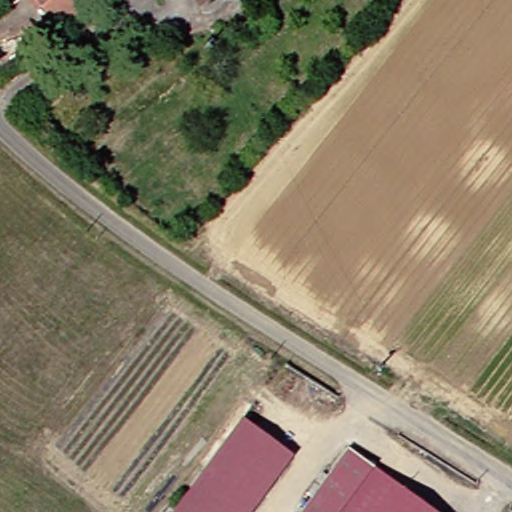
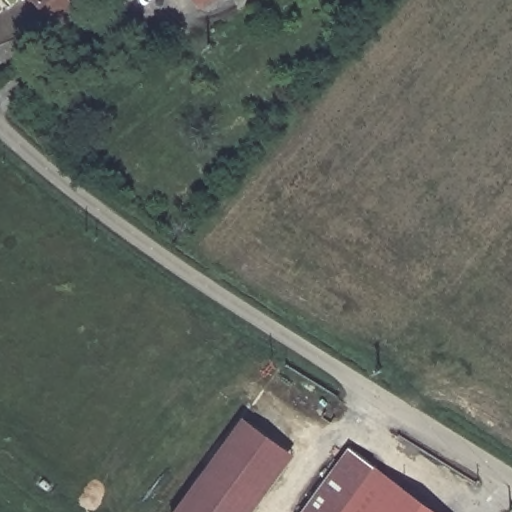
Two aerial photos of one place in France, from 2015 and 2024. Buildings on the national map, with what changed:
unchanged [(36,0),(103,0),(72,27),(50,3),(45,9),(36,0)]
unchanged [(205,7),(200,0),(216,0),(205,7)]
unchanged [(184,512),(255,415),(302,449),(258,512),(184,512)]
unchanged [(386,467),(355,512),(310,512),(357,446),(386,467)]
unchanged [(450,512),(355,512),(386,467),(450,512)]

